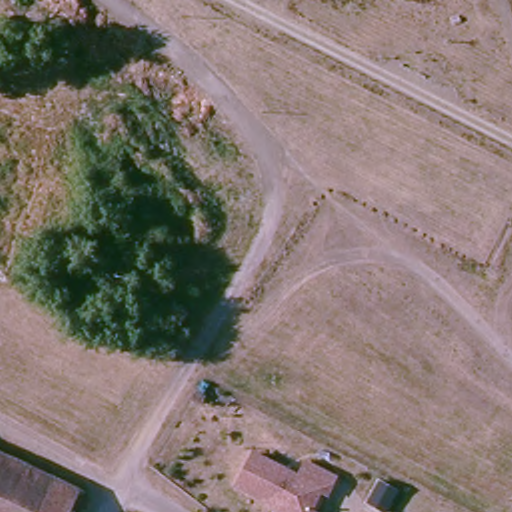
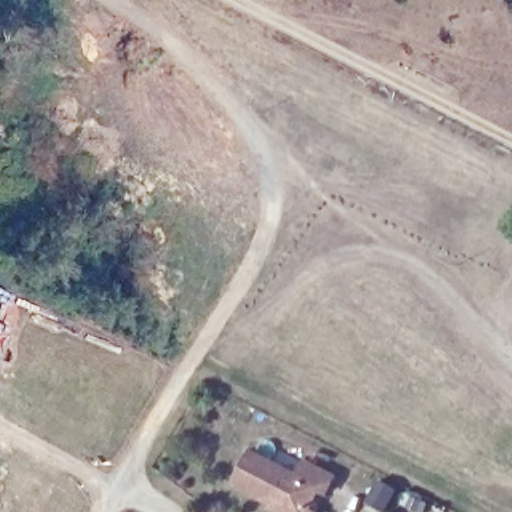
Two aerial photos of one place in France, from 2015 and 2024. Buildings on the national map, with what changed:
demolished [(74,512),(0,512),(0,449),(85,489),(74,512)]
unchanged [(254,458),(300,482),(307,467),(336,482),(328,497),(321,493),(312,512),(280,512),(237,490),(254,458)]

